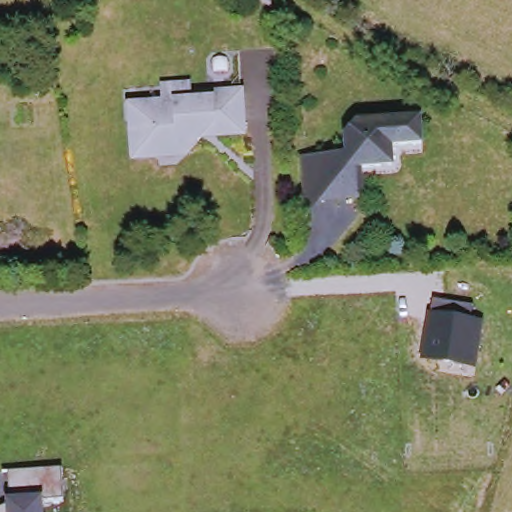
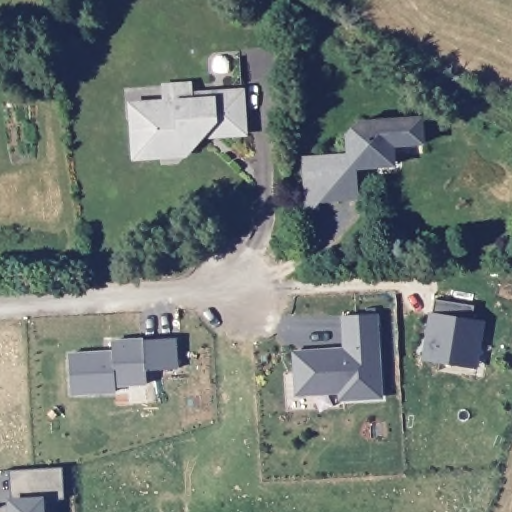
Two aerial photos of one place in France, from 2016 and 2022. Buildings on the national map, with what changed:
unchanged [(138,141),(135,106),(167,104),(166,88),(196,85),(196,95),(204,94),(246,91),(250,134),(221,136),(208,137),(191,156),(139,161),(138,141)]
unchanged [(321,157),(351,155),(349,136),(359,125),(423,121),(424,146),(395,148),(396,168),(384,168),(366,169),(368,199),(361,200),(324,202),(309,213),(306,158),(321,157)]
unchanged [(474,305),(472,319),(484,321),(478,368),(419,359),(427,312),(432,312),(436,300),(474,305)]
new [(384,399),(340,403),(339,395),(294,398),(293,351),(343,348),(341,316),(377,314),(384,399)]
new [(113,350),(113,342),(173,339),(174,370),(144,372),(144,384),(113,386),(113,392),(70,394),(69,353),(113,350)]
unchanged [(64,501),(43,499),(44,512),(0,512),(0,510),(0,509),(10,501),(8,470),(61,469),(64,501)]

